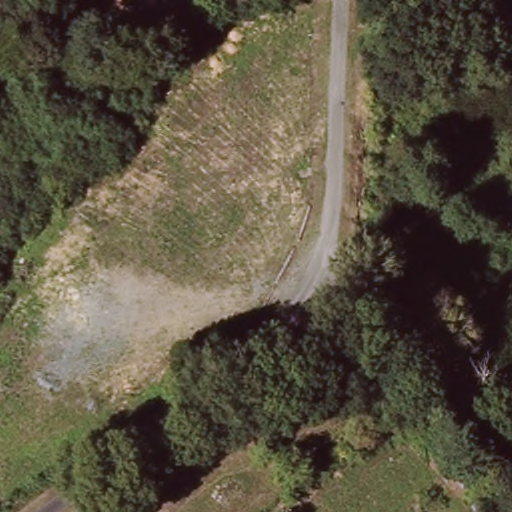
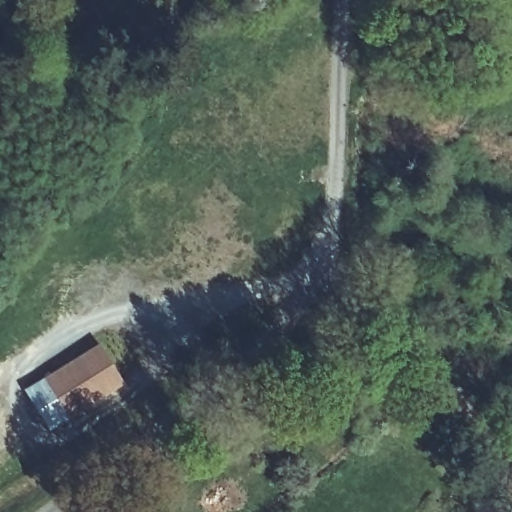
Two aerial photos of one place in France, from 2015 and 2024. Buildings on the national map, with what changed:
new [(125,384),(52,429),(25,389),(100,342),(125,384)]

